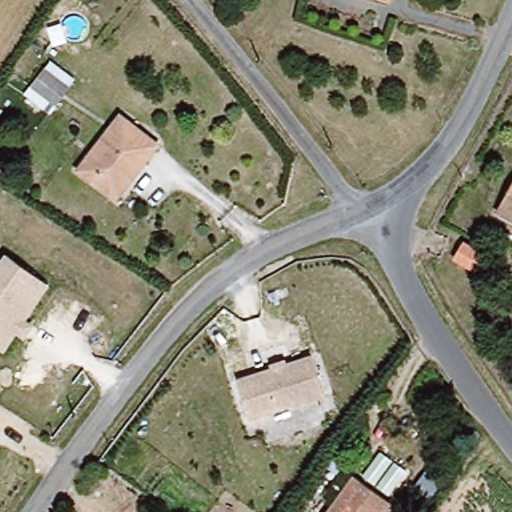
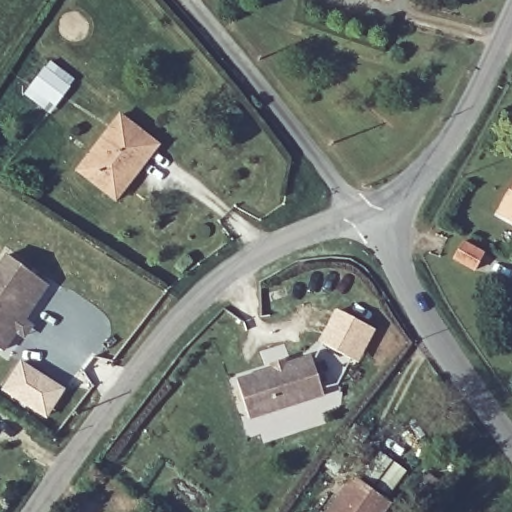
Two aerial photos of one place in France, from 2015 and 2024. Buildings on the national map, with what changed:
unchanged [(70,88),(57,108),(45,99),(42,104),(28,94),(43,71),(70,88)]
unchanged [(115,120),(153,143),(131,177),(125,175),(111,198),(79,177),(115,120)]
unchanged [(512,174),(512,221),(493,211),(512,174)]
unchanged [(485,249),(478,262),(458,251),(463,237),(485,249)]
unchanged [(53,278),(5,351),(0,348),(0,271),(12,252),(53,278)]
new [(357,360),(322,341),(338,311),(373,330),(357,360)]
unchanged [(311,357),(325,398),(248,420),(237,378),(311,357)]
new [(45,417),(32,409),(2,391),(19,363),(49,382),(62,389),(45,417)]
unchanged [(378,512),(327,512),(351,477),(385,501),(378,512)]

